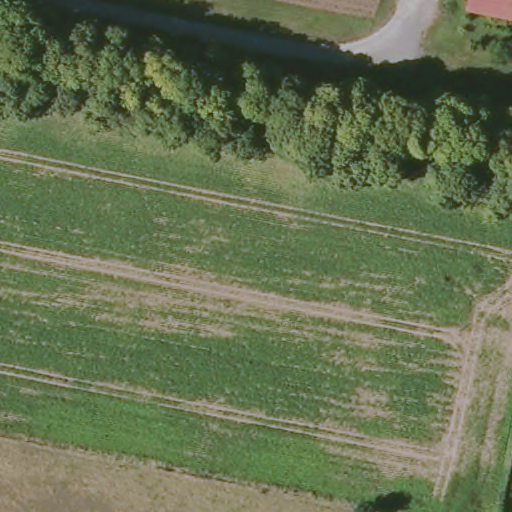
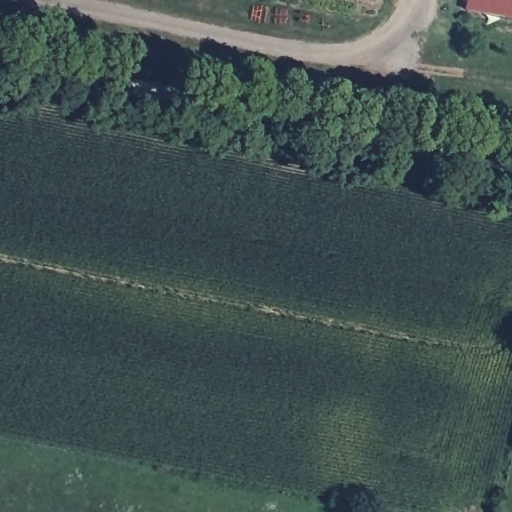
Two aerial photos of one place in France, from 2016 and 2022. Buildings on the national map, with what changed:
unchanged [(512,0),(512,14),(461,6),(462,0),(512,0)]

